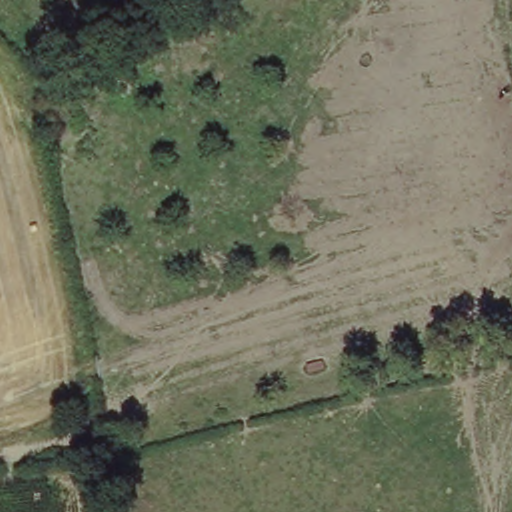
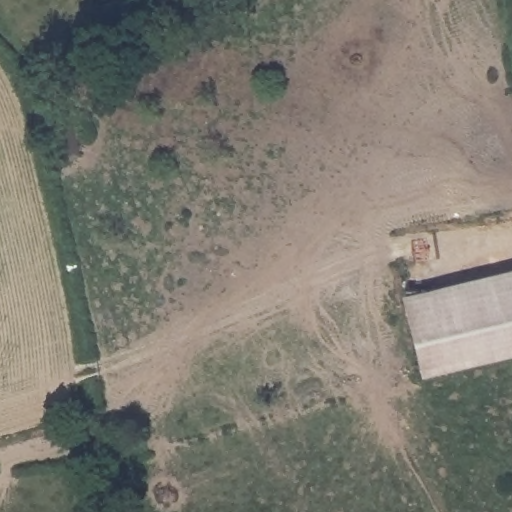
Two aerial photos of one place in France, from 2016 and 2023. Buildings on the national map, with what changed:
new [(512,266),(512,350),(421,371),(402,293),(512,266)]

